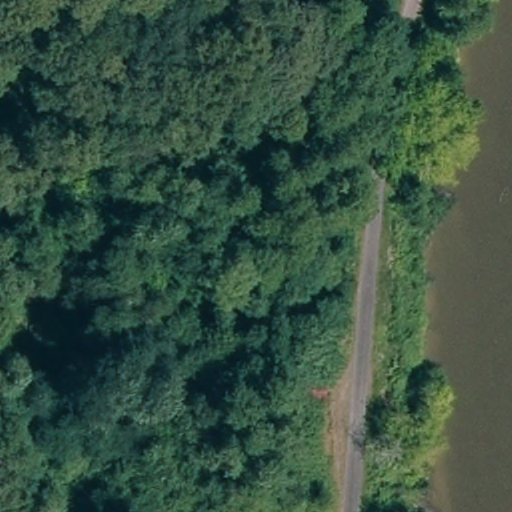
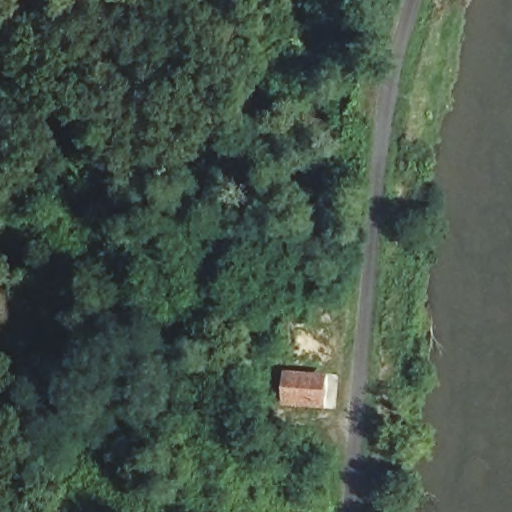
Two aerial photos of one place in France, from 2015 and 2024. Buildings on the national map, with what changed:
new [(281,368),(329,373),(327,407),(279,404),(281,368)]
unchanged [(282,426),(285,405),(324,408),(320,430),(282,426)]

